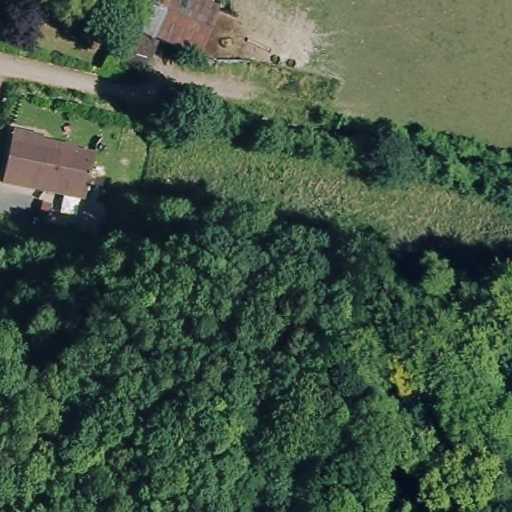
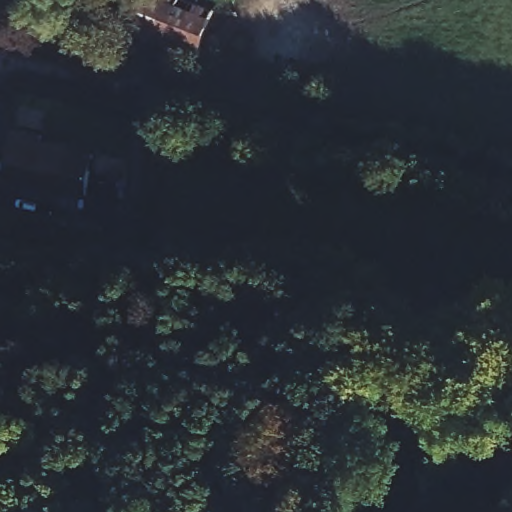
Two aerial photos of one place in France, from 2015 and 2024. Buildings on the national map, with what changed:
unchanged [(219,63),(176,51),(130,36),(144,0),(235,0),(231,13),(219,63)]
unchanged [(50,142),(99,154),(87,199),(8,180),(20,124),(52,131),(50,142)]

